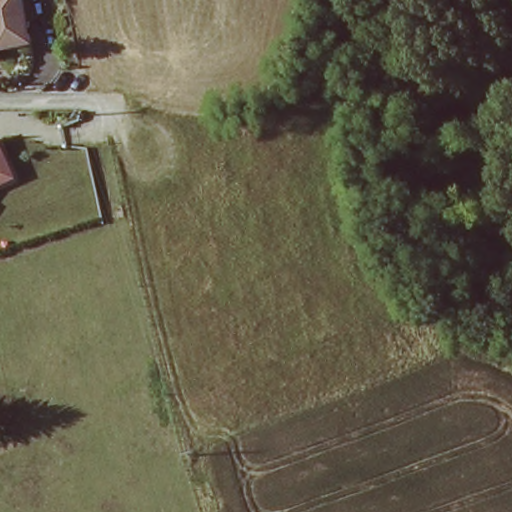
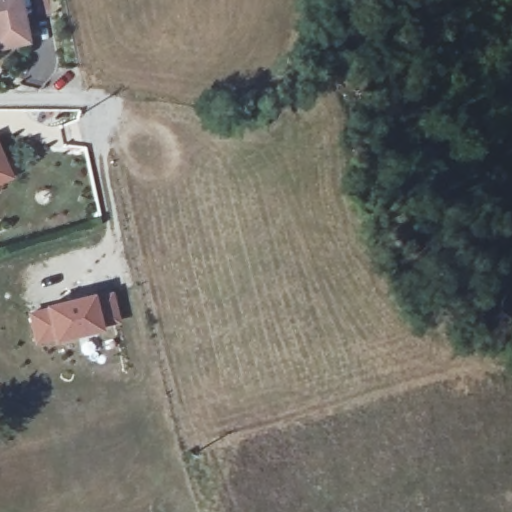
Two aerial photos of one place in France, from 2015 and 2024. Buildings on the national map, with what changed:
unchanged [(0,53),(0,0),(20,0),(28,48),(0,53)]
unchanged [(17,181),(0,187),(0,140),(17,181)]
new [(94,295),(111,294),(118,320),(101,325),(102,330),(56,341),(55,338),(38,342),(30,314),(47,307),(94,295)]

